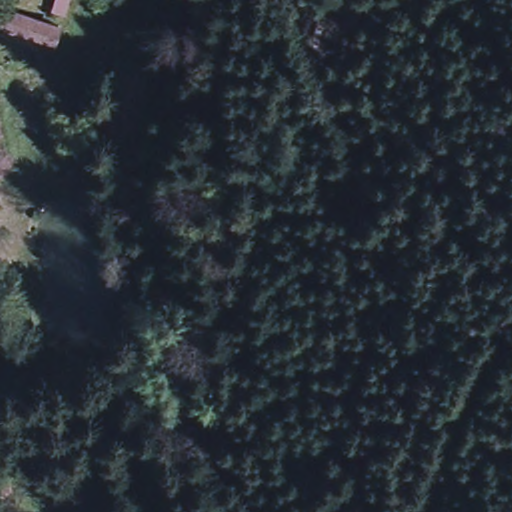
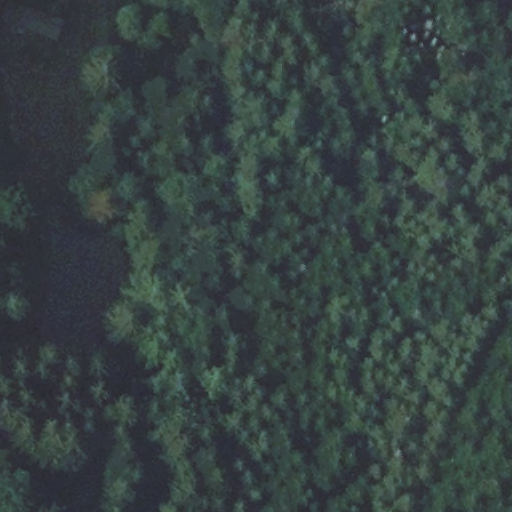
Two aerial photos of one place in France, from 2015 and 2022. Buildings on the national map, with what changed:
unchanged [(55,36),(9,23),(2,21),(6,8),(12,9),(59,23),(55,36)]

